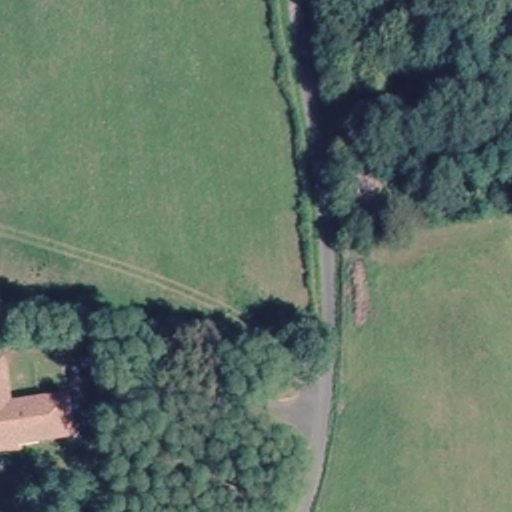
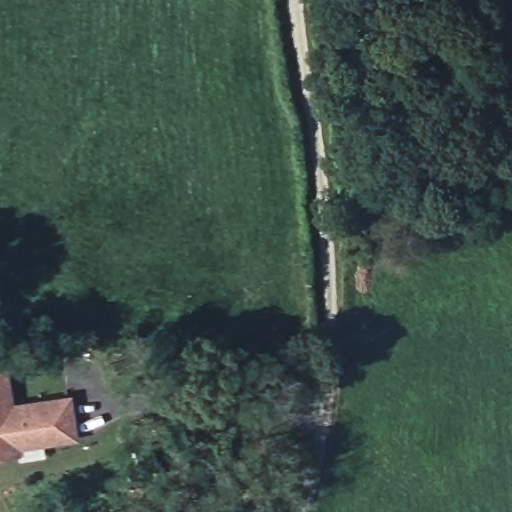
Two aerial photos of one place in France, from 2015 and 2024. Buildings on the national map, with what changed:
unchanged [(0,453),(0,360),(2,360),(3,367),(7,399),(4,399),(5,405),(68,396),(72,431),(73,436),(13,444),(14,450),(0,453)]

